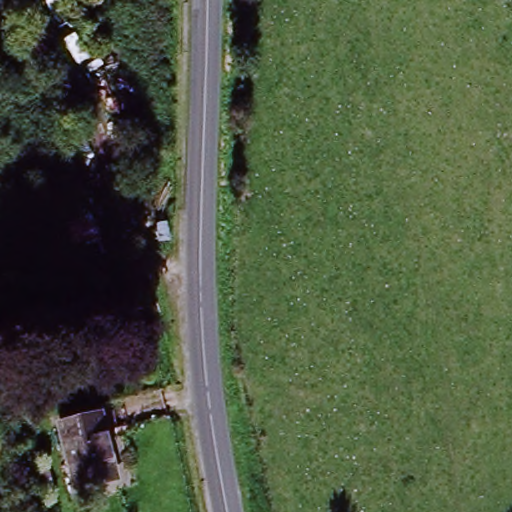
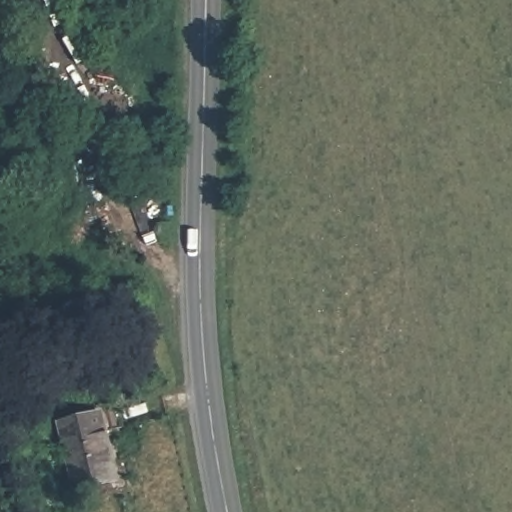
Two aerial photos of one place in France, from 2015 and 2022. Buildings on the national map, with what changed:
unchanged [(64,424),(103,415),(119,481),(81,490),(64,424)]

